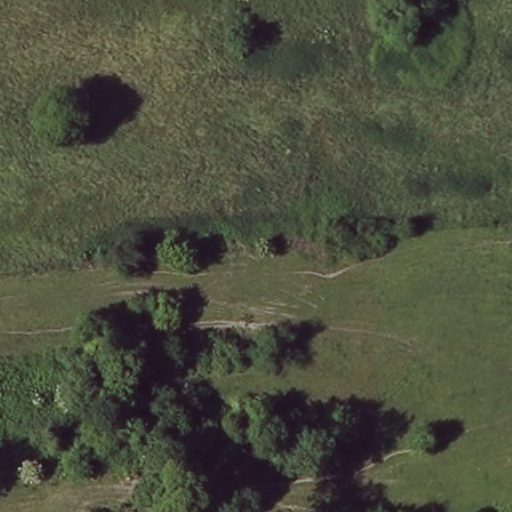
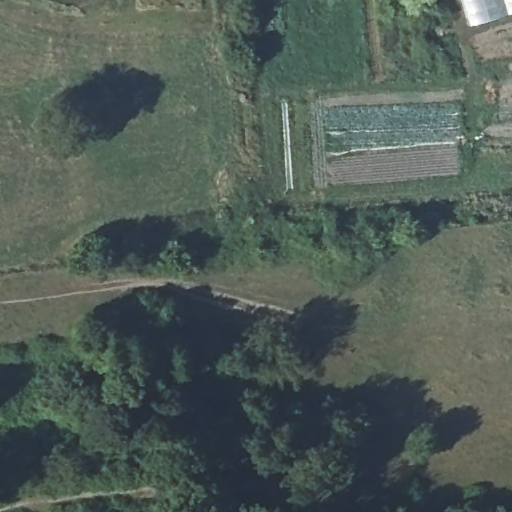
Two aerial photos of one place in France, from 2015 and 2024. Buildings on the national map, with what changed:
new [(461,0),(512,0),(512,11),(468,25),(461,0)]

